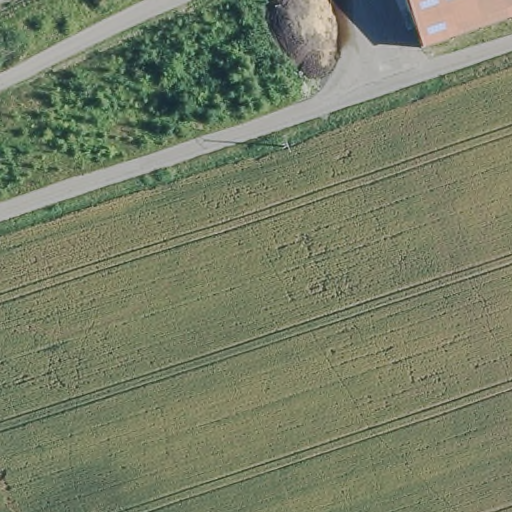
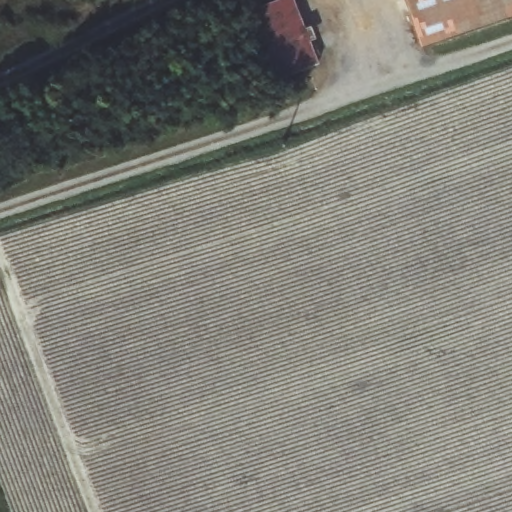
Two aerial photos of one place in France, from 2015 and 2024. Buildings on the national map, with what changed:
unchanged [(413,0),(512,0),(512,19),(430,47),(413,0)]
new [(319,69),(279,85),(250,16),(292,2),(319,69)]

